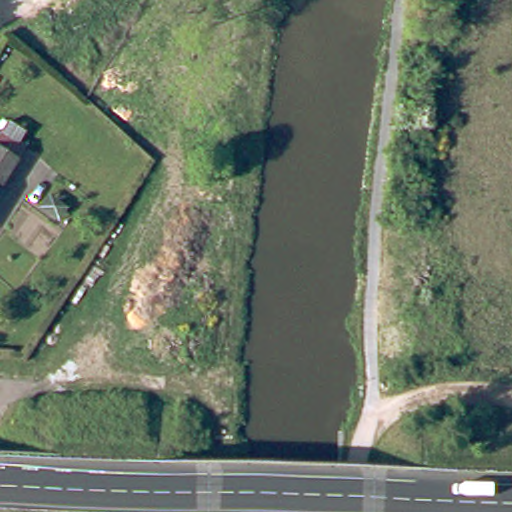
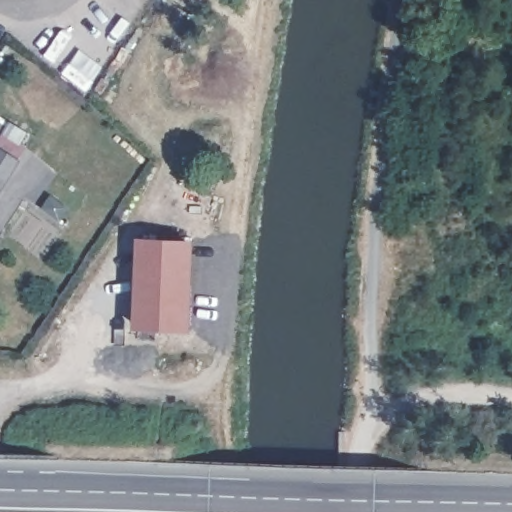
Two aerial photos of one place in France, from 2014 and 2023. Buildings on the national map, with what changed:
demolished [(97,51),(84,72),(74,66),(87,44),(97,51)]
unchanged [(0,195),(0,141),(24,155),(0,195)]
new [(191,331),(133,329),(137,236),(195,239),(191,331)]

